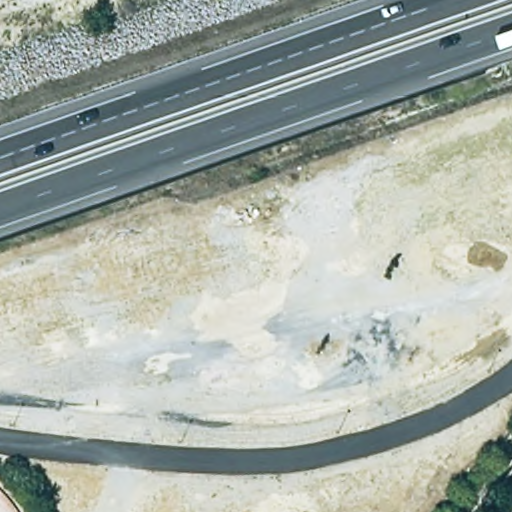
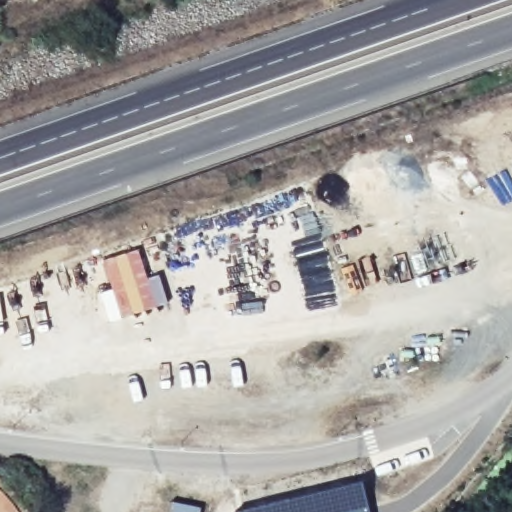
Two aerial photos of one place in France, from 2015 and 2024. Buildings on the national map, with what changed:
new [(111,288),(102,260),(138,249),(147,276),(159,273),(167,303),(110,320),(102,291),(111,288)]
new [(368,512),(233,512),(232,511),(360,480),(368,512)]

